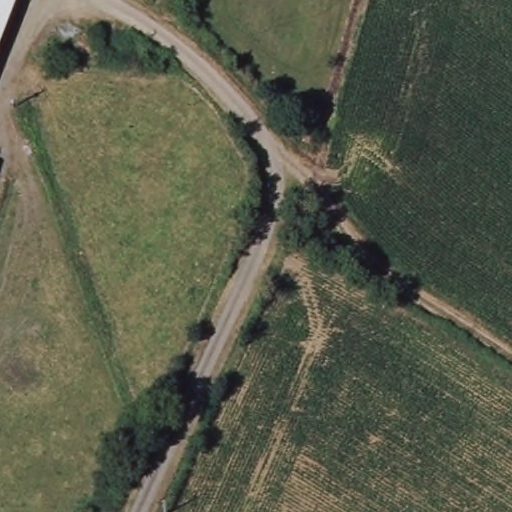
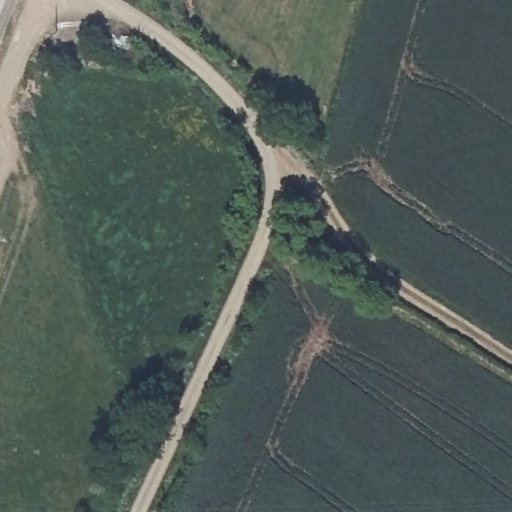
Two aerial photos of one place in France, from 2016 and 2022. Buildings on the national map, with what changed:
unchanged [(0,0),(5,0),(0,18),(0,0)]

